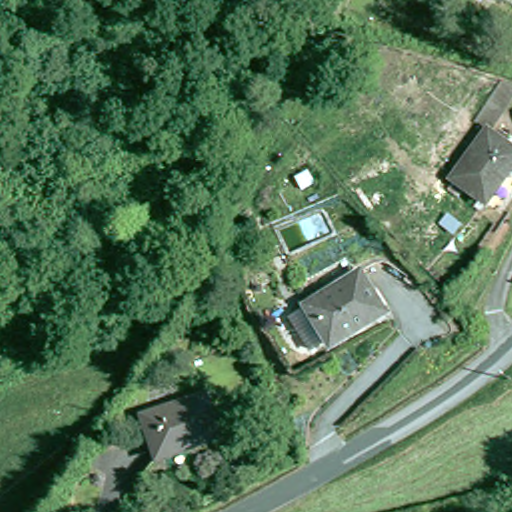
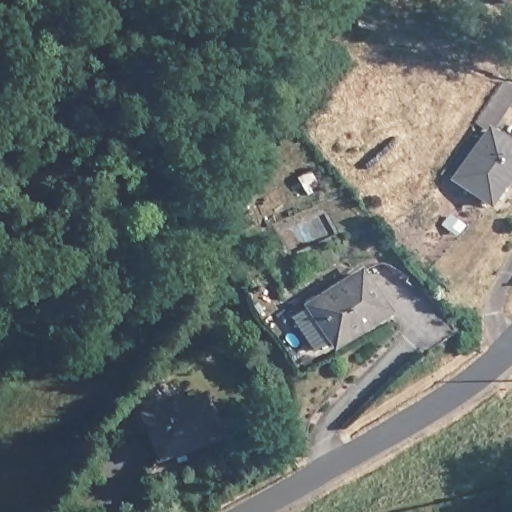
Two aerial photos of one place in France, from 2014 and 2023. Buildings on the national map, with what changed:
unchanged [(495,0),(509,0),(504,7),(495,0)]
unchanged [(452,181),(488,131),(512,148),(512,170),(487,206),(452,181)]
unchanged [(350,161),(337,170),(332,161),(345,152),(350,161)]
unchanged [(307,307),(364,270),(389,310),(332,346),(307,307)]
unchanged [(144,418),(203,398),(217,436),(159,457),(144,418)]

